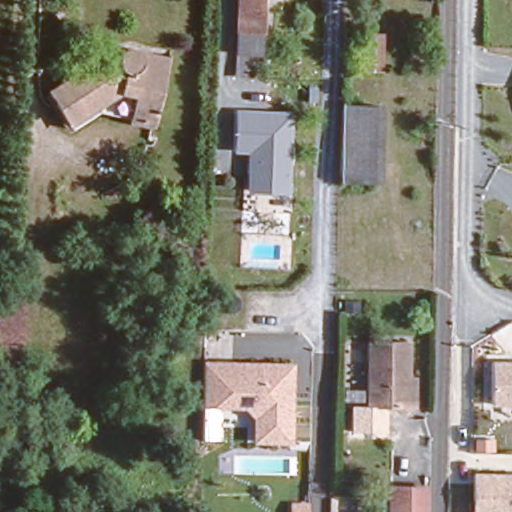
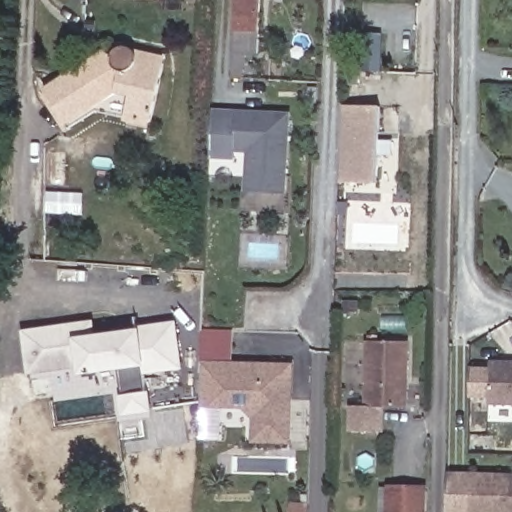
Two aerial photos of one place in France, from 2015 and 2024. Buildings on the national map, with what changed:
unchanged [(260,58),(241,58),(230,57),(231,0),(261,0),(260,58)]
unchanged [(383,68),(370,67),(354,66),(354,27),(371,28),(383,28),(383,68)]
unchanged [(116,81),(65,110),(49,82),(85,59),(91,64),(117,47),(116,42),(124,35),(136,38),(166,45),(164,58),(151,116),(132,111),(137,85),(116,81)]
unchanged [(97,104),(70,119),(65,110),(116,81),(137,85),(132,111),(97,104)]
unchanged [(338,176),(340,100),(364,101),(377,102),(375,178),(363,177),(338,176)]
new [(233,160),(211,159),(213,108),(235,109),(233,153),(233,160)]
unchanged [(245,192),(247,153),(233,153),(235,109),(292,111),(288,193),(245,192)]
new [(147,374),(153,413),(122,417),(119,395),(122,394),(119,370),(79,376),(78,368),(30,375),(23,330),(95,320),(99,334),(138,329),(137,326),(177,321),(184,368),(147,374)]
unchanged [(414,398),(402,399),(365,399),(365,332),(404,333),(403,369),(415,370),(414,398)]
unchanged [(253,417),(245,408),(220,408),(219,442),(200,441),(204,359),(297,363),(293,445),(254,444),(253,417)]
unchanged [(512,360),(512,405),(491,404),(493,359),(512,360)]
unchanged [(512,474),(512,512),(473,512),(474,473),(512,474)]
unchanged [(423,512),(388,512),(389,483),(424,484),(423,512)]

